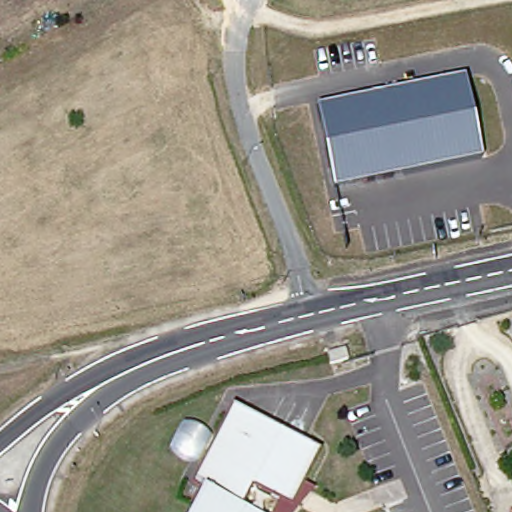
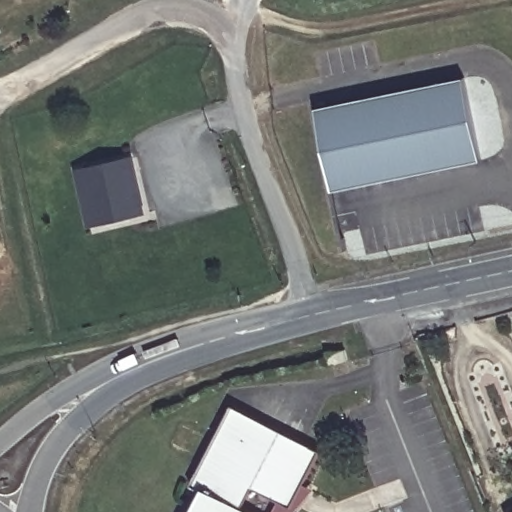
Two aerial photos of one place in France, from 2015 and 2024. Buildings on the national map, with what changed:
unchanged [(464,79),(482,160),(333,191),(316,110),(464,79)]
new [(88,225),(75,170),(134,155),(148,212),(88,225)]
unchanged [(329,355),(346,350),(348,357),(349,360),(331,365),(331,362),(329,355)]
unchanged [(316,453),(287,512),(192,512),(201,496),(188,490),(229,410),(316,453)]

